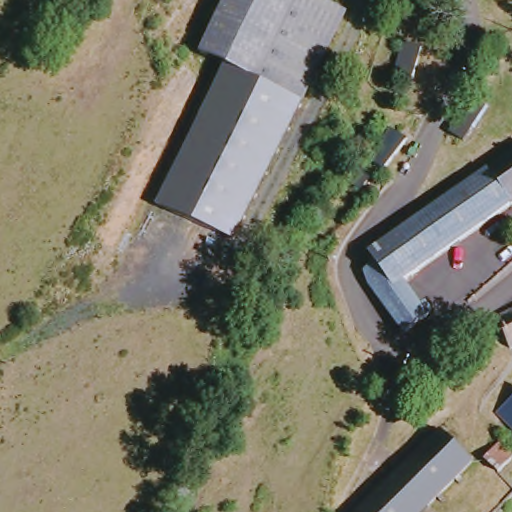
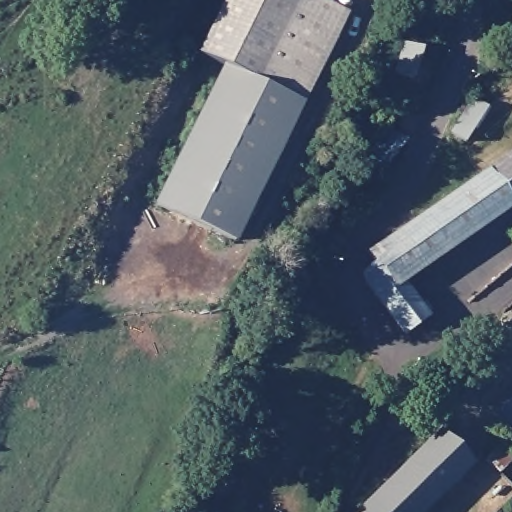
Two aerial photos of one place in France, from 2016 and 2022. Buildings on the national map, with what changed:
unchanged [(303,102),(234,242),(155,200),(223,64),(198,50),(222,0),(317,0),(346,14),(303,102)]
unchanged [(400,71),(407,43),(425,47),(416,76),(400,71)]
unchanged [(454,134),(473,99),(486,105),(466,141),(454,134)]
unchanged [(408,139),(386,164),(372,151),(394,127),(408,139)]
unchanged [(371,260),(367,253),(512,150),(512,203),(401,279),(423,316),(402,334),(357,270),(371,260)]
unchanged [(373,169),(362,183),(352,173),(363,161),(373,169)]
unchanged [(502,349),(491,323),(491,318),(512,307),(512,346),(507,348),(502,349)]
unchanged [(512,399),(512,421),(501,409),(512,399)]
unchanged [(393,471),(435,429),(468,462),(425,504),(393,471)]
unchanged [(501,444),(512,456),(512,461),(500,473),(486,458),(501,444)]
unchanged [(416,512),(352,512),(393,471),(425,504),(416,512)]

